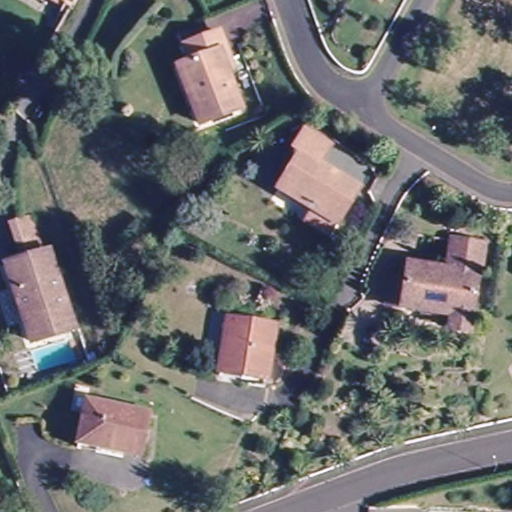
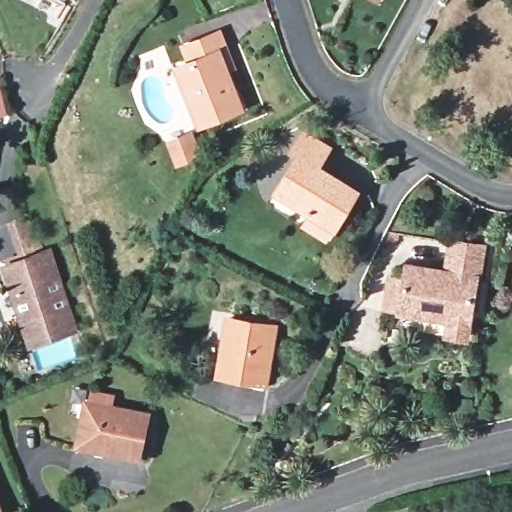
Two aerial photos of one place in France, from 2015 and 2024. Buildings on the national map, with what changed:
unchanged [(200,113),(180,54),(194,50),(190,37),(225,25),(230,41),(237,61),(226,65),(239,99),(200,113)]
unchanged [(302,222),(310,207),(280,187),(304,154),(298,149),(311,130),(333,145),(321,163),(356,187),(332,222),(322,236),(302,222)]
unchanged [(69,330),(29,347),(0,271),(0,268),(20,261),(6,226),(24,220),(37,254),(40,253),(69,330)]
unchanged [(389,273),(405,276),(407,260),(446,266),(451,240),(485,246),(480,275),(475,275),(467,330),(451,327),(453,311),(385,301),(389,273)]
unchanged [(512,248),(512,264),(506,261),(512,248)]
unchanged [(223,367),(230,317),(273,323),(265,380),(245,377),(222,374),(223,367)]
unchanged [(81,436),(87,400),(149,410),(143,451),(125,448),(124,456),(96,452),(79,450),(81,436)]
unchanged [(5,507),(0,510),(0,497),(5,507)]

